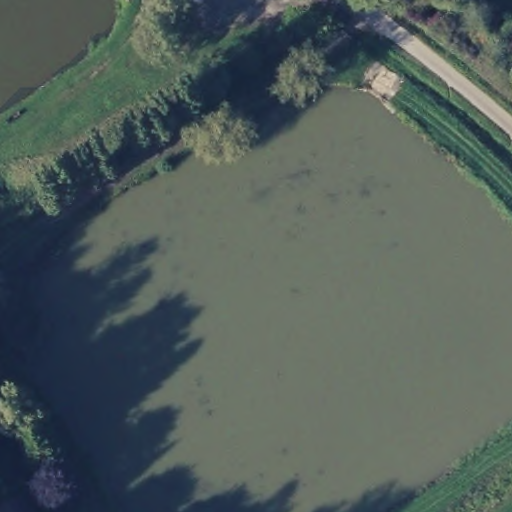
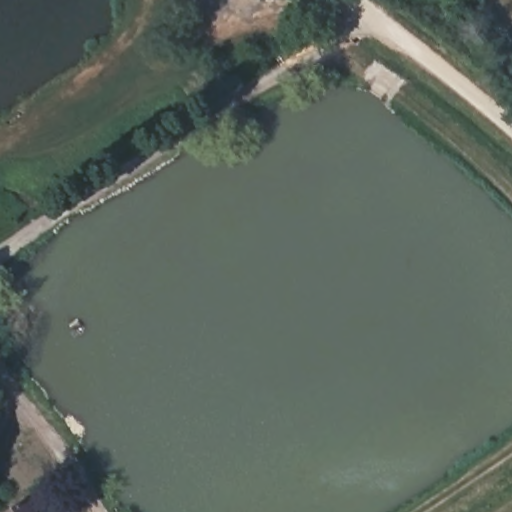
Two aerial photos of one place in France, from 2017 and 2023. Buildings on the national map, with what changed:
unchanged [(27,499),(35,512),(7,512),(27,499)]

